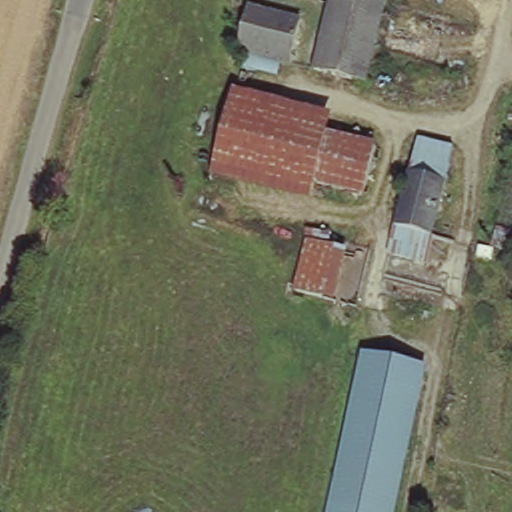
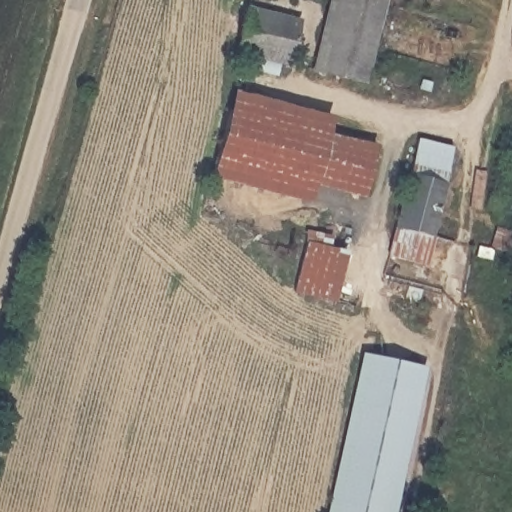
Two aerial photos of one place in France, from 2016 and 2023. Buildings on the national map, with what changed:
unchanged [(366,79),(314,67),(329,0),(384,0),(366,79)]
unchanged [(247,52),(239,49),(250,4),(300,17),(291,61),(247,52)]
unchanged [(313,201),(215,177),(237,88),(334,115),(331,134),(318,184),(313,201)]
unchanged [(377,146),(362,196),(318,184),(331,134),(377,146)]
unchanged [(455,144),(430,261),(388,250),(417,137),(455,144)]
unchanged [(310,244),(345,253),(332,302),(328,302),(297,293),(310,244)]
unchanged [(367,356),(415,366),(387,512),(334,512),(363,378),(367,356)]

